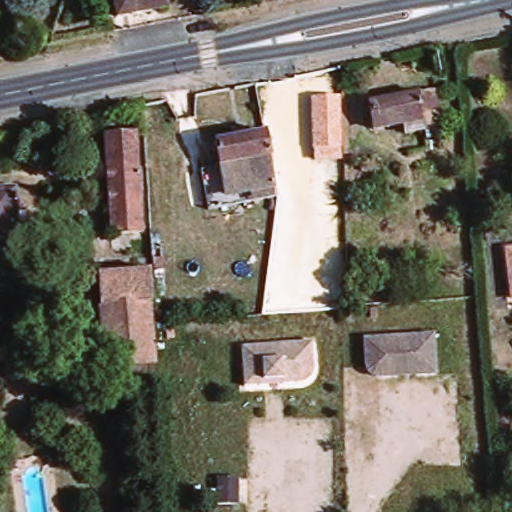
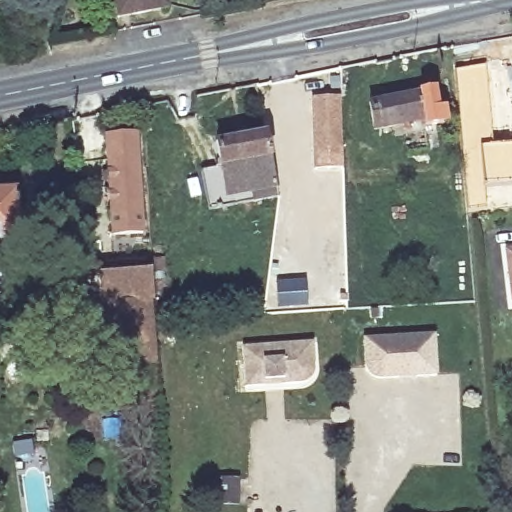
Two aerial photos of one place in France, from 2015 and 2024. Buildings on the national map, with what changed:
unchanged [(129,0),(179,0),(180,3),(132,13),(129,0)]
unchanged [(421,139),(420,129),(392,135),(386,107),(448,96),(455,127),(438,130),(440,136),(421,139)]
unchanged [(350,178),(324,182),(311,115),(337,111),(350,178)]
unchanged [(233,157),(228,132),(277,123),(282,147),(288,177),(239,187),(233,157)]
unchanged [(120,227),(117,127),(147,125),(152,125),(155,125),(161,233),(159,234),(154,234),(140,236),(121,237),(120,227)]
new [(512,182),(484,184),(480,146),(512,143),(512,182)]
unchanged [(290,187),(222,201),(213,161),(233,157),(239,187),(288,177),(290,187)]
unchanged [(30,194),(35,242),(0,245),(0,197),(30,194)]
unchanged [(168,301),(162,302),(164,322),(165,341),(169,388),(167,389),(162,389),(117,392),(111,276),(146,273),(146,261),(154,260),(160,259),(161,259),(162,274),(167,272),(168,301)]
unchanged [(382,385),(366,370),(364,346),(434,341),(437,381),(417,382),(399,383),(382,385)]
unchanged [(321,375),(321,377),(320,380),(319,382),(318,384),(316,386),(314,388),(311,390),(307,391),(290,392),(289,387),(271,389),(272,393),(252,395),(249,355),(318,350),(321,375)]
unchanged [(252,484),(250,510),(219,508),(222,481),(252,484)]

